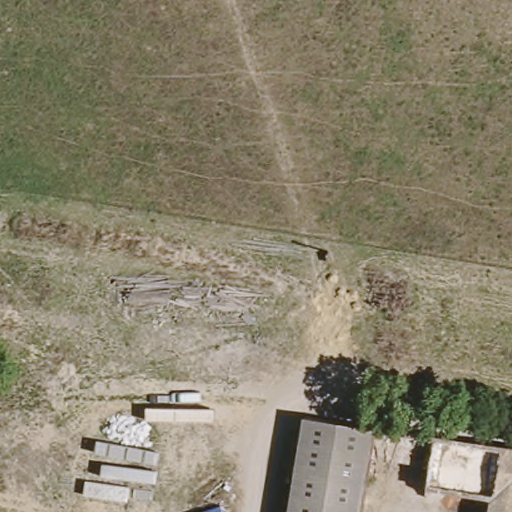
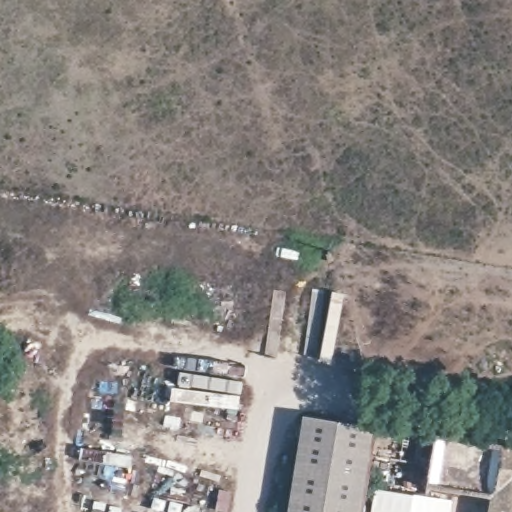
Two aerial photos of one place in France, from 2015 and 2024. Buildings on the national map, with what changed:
unchanged [(300,420),(512,451),(512,512),(486,512),(488,497),(425,493),(425,468),(411,464),(406,491),(364,487),(360,512),(286,512),(300,420)]
new [(375,488),(452,499),(450,512),(371,512),(375,488)]

